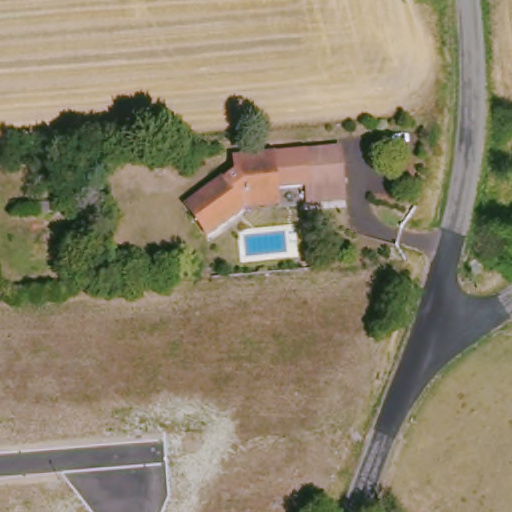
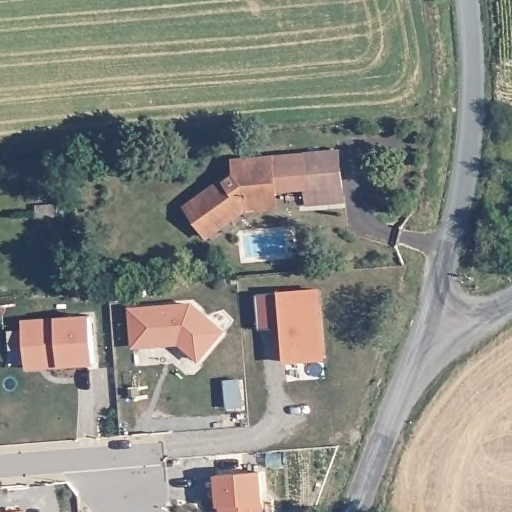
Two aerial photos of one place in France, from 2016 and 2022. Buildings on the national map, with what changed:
unchanged [(307,199),(306,188),(278,190),(277,207),(246,209),(207,239),(185,201),(222,176),(225,178),(233,171),(232,155),(276,154),(340,145),(342,196),(307,199)]
new [(319,290),(324,359),(286,362),(283,328),(259,330),(256,295),(319,290)]
new [(224,330),(199,359),(180,343),(179,339),(171,339),(171,343),(134,346),(131,309),(192,304),(224,330)]
new [(26,359),(22,321),(92,316),(95,362),(46,366),(26,368),(26,359)]
new [(216,506),(215,474),(260,473),(261,512),(222,512),(222,506),(216,506)]
new [(25,512),(5,512),(25,510),(25,512)]

